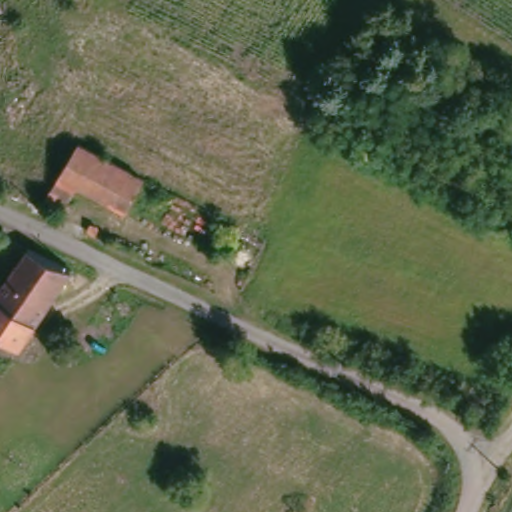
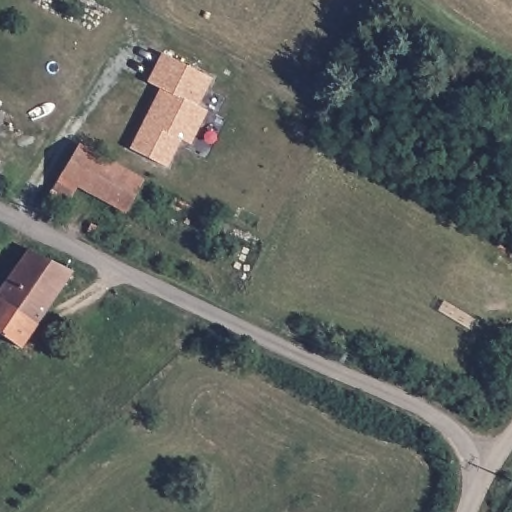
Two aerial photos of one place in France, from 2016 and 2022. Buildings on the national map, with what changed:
new [(161,54),(212,79),(197,106),(207,112),(190,144),(183,140),(167,167),(131,147),(159,89),(147,82),(161,54)]
unchanged [(78,140),(142,175),(125,207),(77,181),(69,197),(62,194),(52,211),(37,205),(78,140)]
unchanged [(14,342),(0,332),(0,276),(23,244),(66,265),(14,342)]

